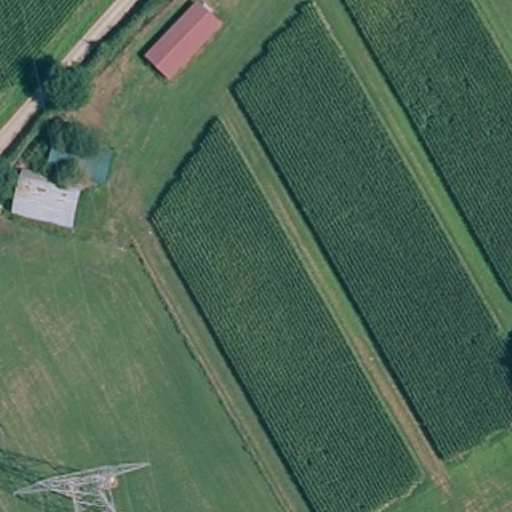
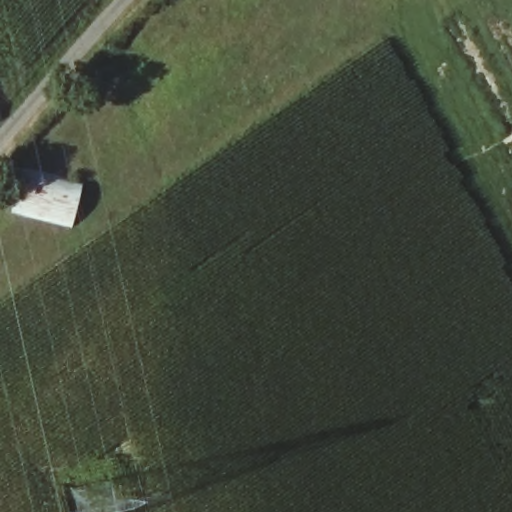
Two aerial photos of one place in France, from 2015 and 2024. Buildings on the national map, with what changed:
demolished [(145,54),(197,0),(199,0),(221,21),(167,76),(145,54)]
unchanged [(86,180),(75,225),(13,208),(22,170),(48,173),(59,136),(118,150),(111,184),(86,180)]

